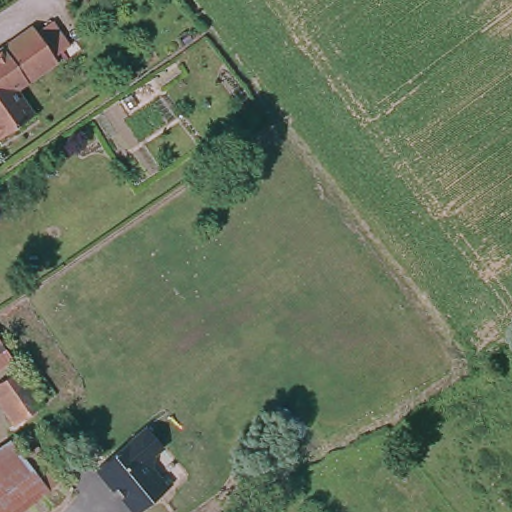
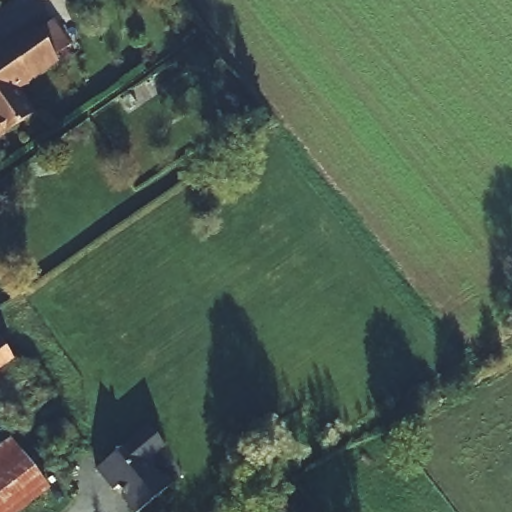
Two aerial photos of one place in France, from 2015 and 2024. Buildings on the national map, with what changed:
unchanged [(52,61),(12,91),(28,116),(0,136),(0,50),(32,28),(52,61)]
unchanged [(10,355),(0,363),(0,342),(10,355)]
unchanged [(45,399),(18,421),(0,398),(0,374),(15,362),(45,399)]
unchanged [(4,438),(47,493),(23,512),(0,512),(0,442),(4,438)]
unchanged [(173,482),(137,512),(133,512),(98,470),(136,438),(173,482)]

